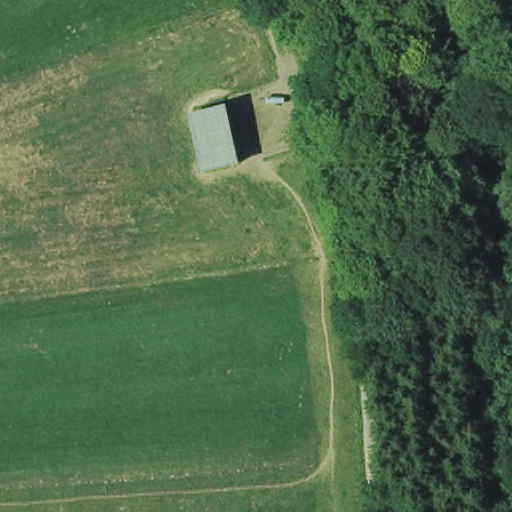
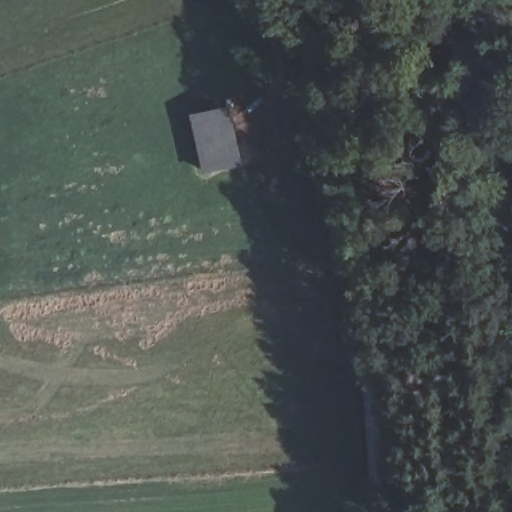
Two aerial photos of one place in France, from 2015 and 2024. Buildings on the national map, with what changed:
unchanged [(194,117),(227,108),(242,161),(208,170),(194,117)]

